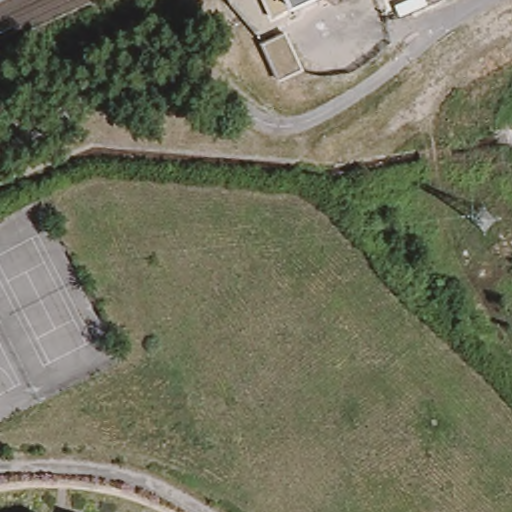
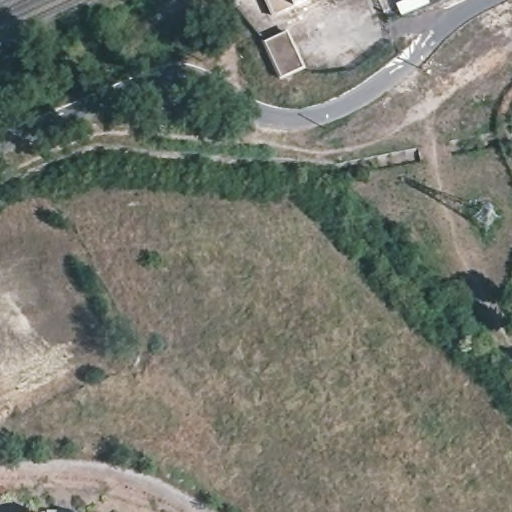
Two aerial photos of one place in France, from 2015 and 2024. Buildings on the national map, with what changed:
unchanged [(311,0),(277,16),(270,0),(311,0)]
unchanged [(397,5),(401,3),(408,0),(414,0),(416,5),(405,11),(400,13),(397,5)]
unchanged [(291,32),(308,69),(285,79),(268,42),(291,32)]

